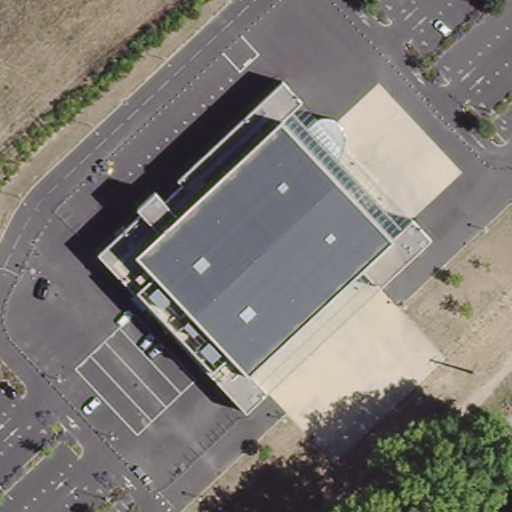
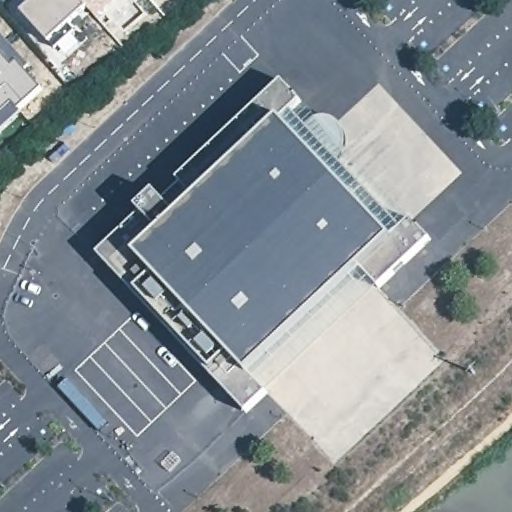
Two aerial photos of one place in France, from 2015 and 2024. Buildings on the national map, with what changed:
new [(34,0),(80,0),(87,7),(47,41),(21,12),(34,0)]
new [(96,16),(87,7),(80,0),(114,0),(96,16)]
new [(27,72),(42,90),(19,110),(22,114),(0,134),(0,35),(30,70),(27,72)]
unchanged [(316,113),(307,125),(388,215),(399,202),(435,236),(251,411),(99,251),(179,181),(177,176),(286,79),(316,113)]

